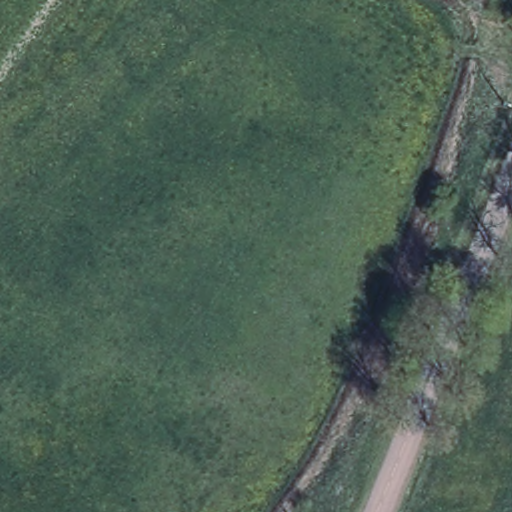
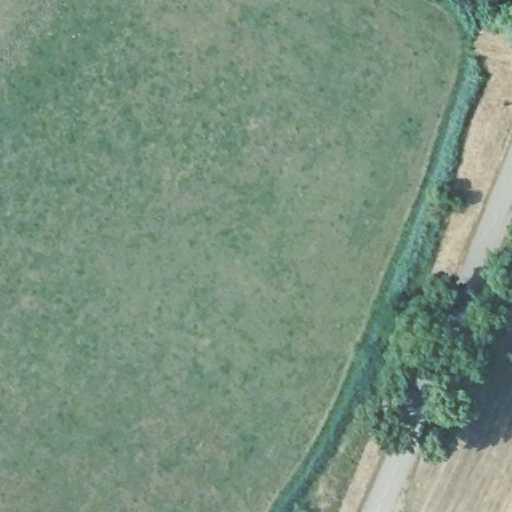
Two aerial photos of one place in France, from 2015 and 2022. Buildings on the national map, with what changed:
[]

